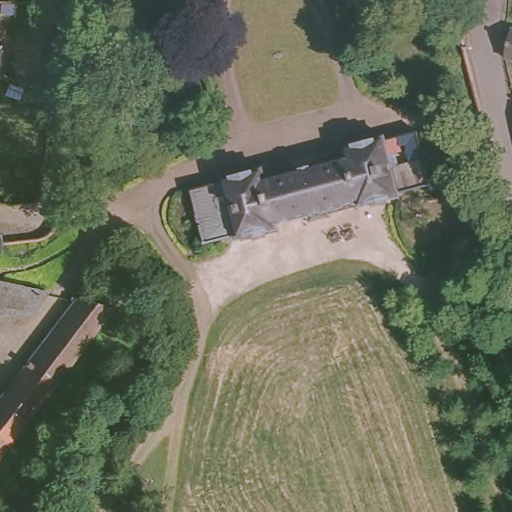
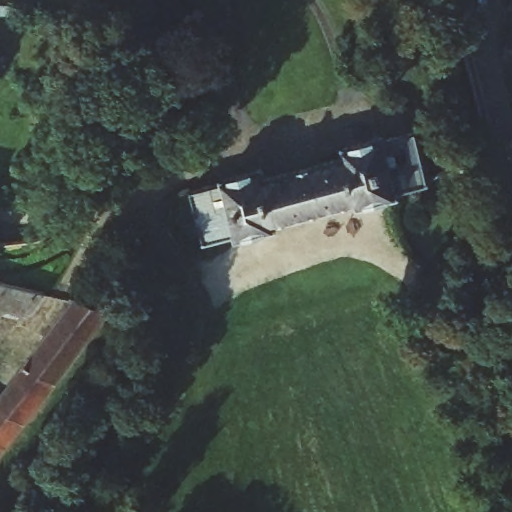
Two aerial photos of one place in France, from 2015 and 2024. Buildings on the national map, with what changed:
unchanged [(505,59),(510,29),(512,29),(512,60),(505,59)]
unchanged [(430,188),(402,195),(402,198),(359,209),(356,204),(274,224),(276,230),(237,240),(236,238),(204,246),(191,191),(221,184),(221,179),(261,169),(264,180),(346,160),(344,148),(384,137),(385,141),(417,134),(430,188)]
unchanged [(6,226),(9,229),(13,234),(15,239),(15,242),(14,248),(13,252),(9,255),(6,258),(1,259),(0,260),(0,224),(6,226)]
unchanged [(29,313),(10,307),(9,313),(0,310),(0,278),(52,296),(39,310),(29,313)]
unchanged [(81,363),(61,384),(41,406),(22,428),(19,431),(0,420),(0,397),(83,306),(120,319),(100,340),(81,363)]
unchanged [(0,456),(0,420),(19,431),(0,456)]

